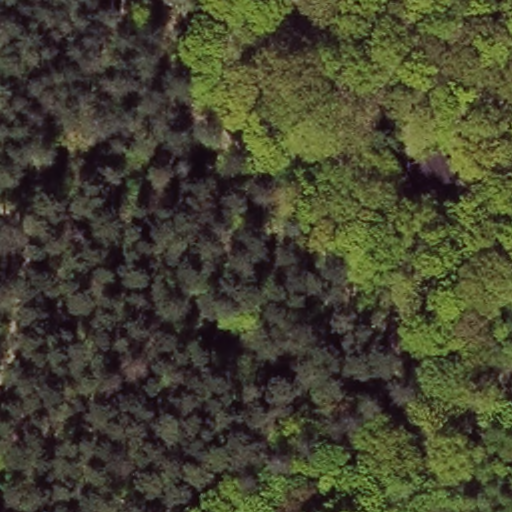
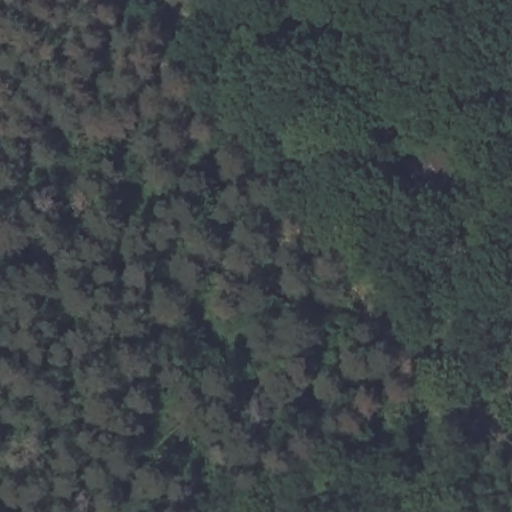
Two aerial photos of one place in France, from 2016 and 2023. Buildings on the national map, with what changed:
unchanged [(393,198),(386,176),(425,162),(433,186),(393,198)]
unchanged [(512,240),(512,274),(507,278),(487,257),(508,235),(512,240)]

